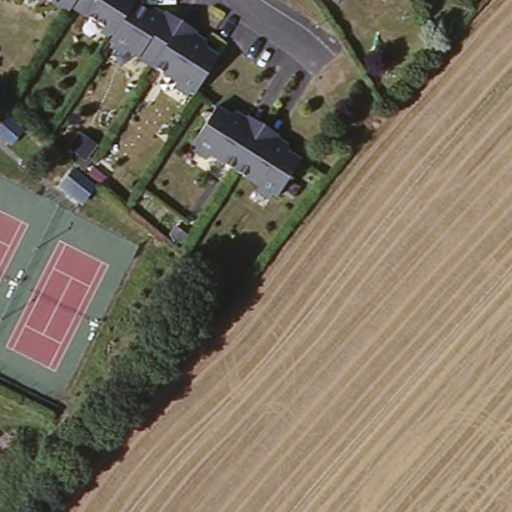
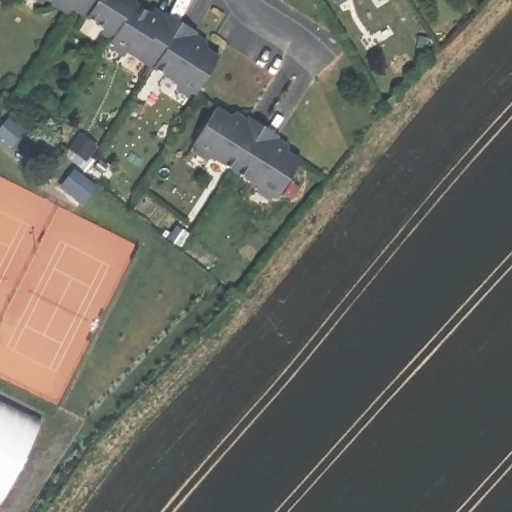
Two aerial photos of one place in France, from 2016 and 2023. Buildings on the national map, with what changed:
unchanged [(66,0),(68,0),(68,1),(66,0)]
unchanged [(159,14),(187,30),(189,27),(216,45),(195,80),(108,27),(111,22),(77,0),(148,0),(161,9),(159,14)]
unchanged [(335,0),(345,0),(338,5),(335,0)]
unchanged [(241,116),(239,120),(271,141),(274,136),(300,152),(276,187),(196,134),(218,100),(241,116)]
unchanged [(112,186),(101,200),(71,177),(82,162),(112,186)]
new [(0,501),(0,401),(40,421),(0,501)]

